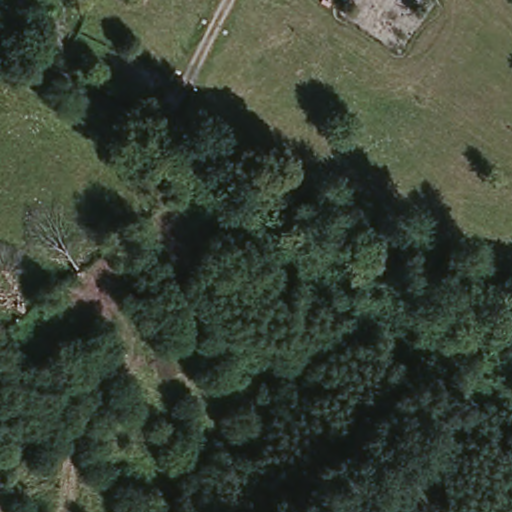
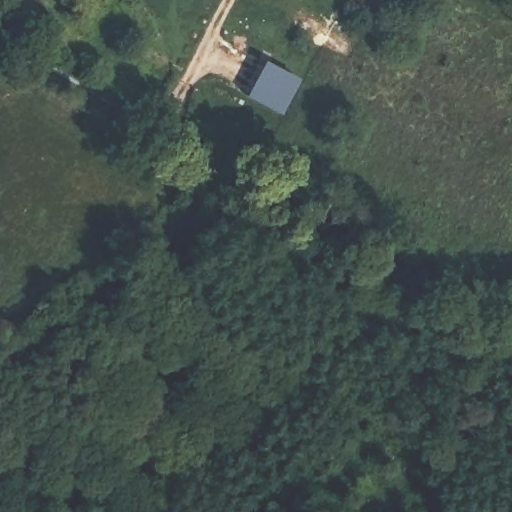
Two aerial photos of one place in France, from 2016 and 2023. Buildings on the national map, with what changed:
new [(265,63),(299,80),(281,114),(248,97),(265,63)]

